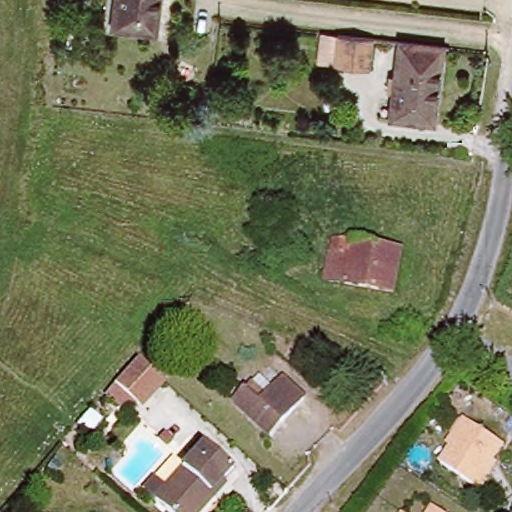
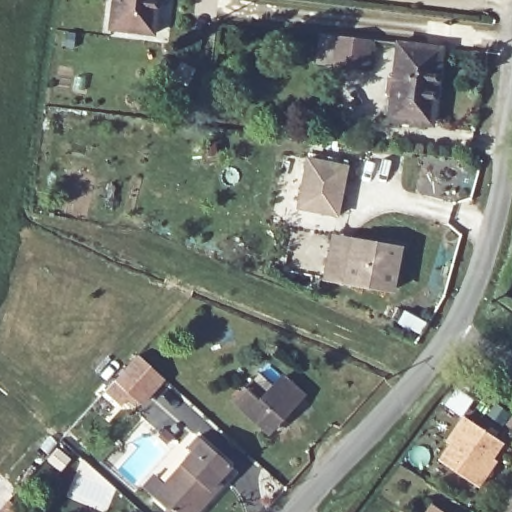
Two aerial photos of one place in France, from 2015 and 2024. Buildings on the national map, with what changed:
unchanged [(105,29),(109,0),(154,0),(150,35),(105,29)]
unchanged [(370,41),(366,73),(330,68),(334,36),(370,41)]
unchanged [(431,131),(387,126),(398,44),(441,50),(431,131)]
new [(308,159),(348,164),(341,214),(301,209),(308,159)]
unchanged [(397,249),(387,292),(322,282),(328,253),(346,254),(352,242),(397,249)]
unchanged [(162,379),(142,404),(114,381),(136,356),(162,379)]
unchanged [(282,378),(306,397),(272,437),(230,403),(240,389),(255,370),(275,385),(282,378)]
unchanged [(434,467),(448,447),(441,440),(457,416),(497,441),(480,468),(485,472),(471,491),(434,467)]
unchanged [(512,441),(512,448),(511,442),(512,441)]
unchanged [(203,444),(229,466),(218,478),(226,484),(202,512),(170,512),(155,499),(203,444)]
unchanged [(438,512),(429,512),(432,508),(438,512)]

